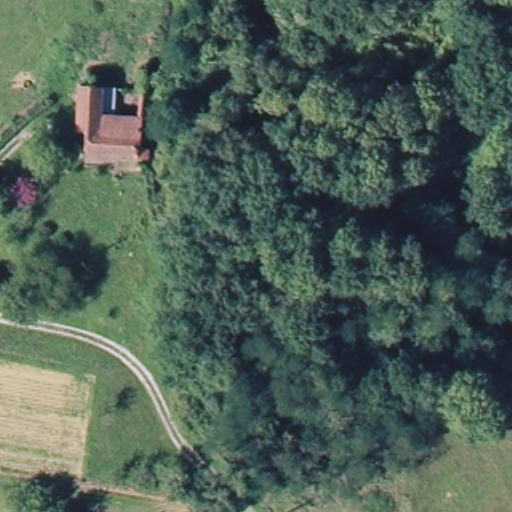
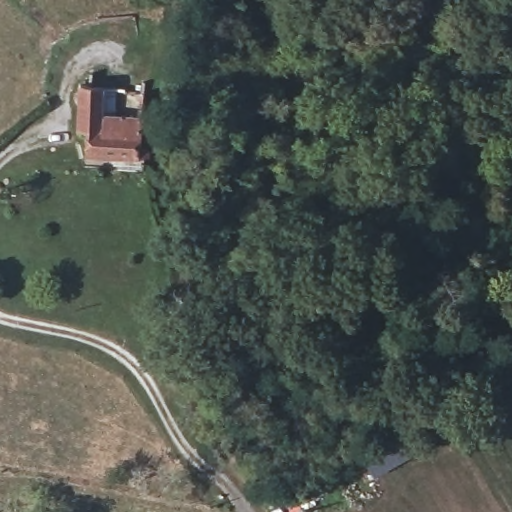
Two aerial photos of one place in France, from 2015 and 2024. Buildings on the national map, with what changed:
unchanged [(129,160),(81,157),(82,129),(76,128),(75,113),(77,85),(86,85),(104,87),(101,115),(143,118),(142,148),(142,161),(129,160)]

